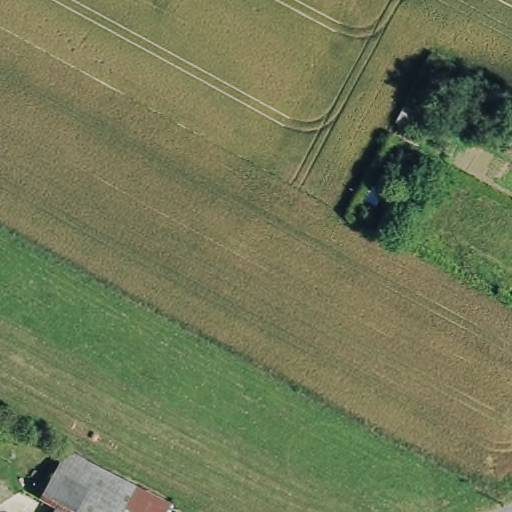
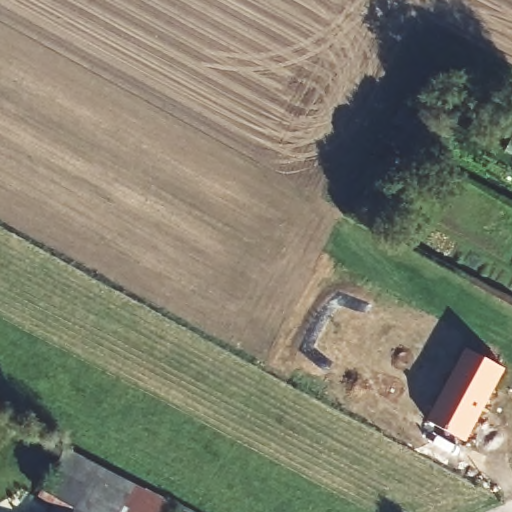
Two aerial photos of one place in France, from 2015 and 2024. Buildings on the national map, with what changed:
new [(506,368),(466,443),(427,422),(465,350),(506,368)]
unchanged [(172,497),(164,512),(91,512),(55,493),(48,490),(72,446),(172,497)]
unchanged [(61,502),(46,494),(48,490),(55,493),(91,512),(51,512),(61,502)]

